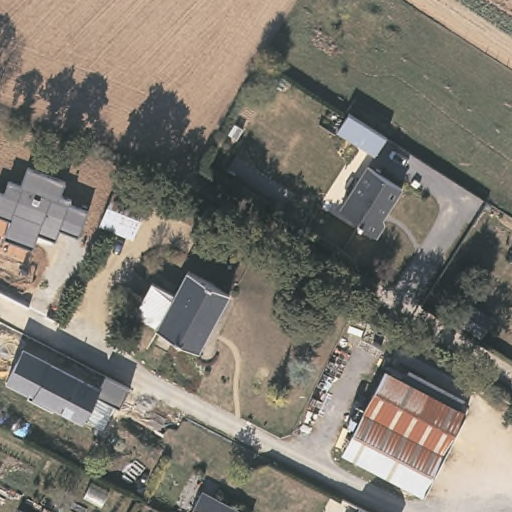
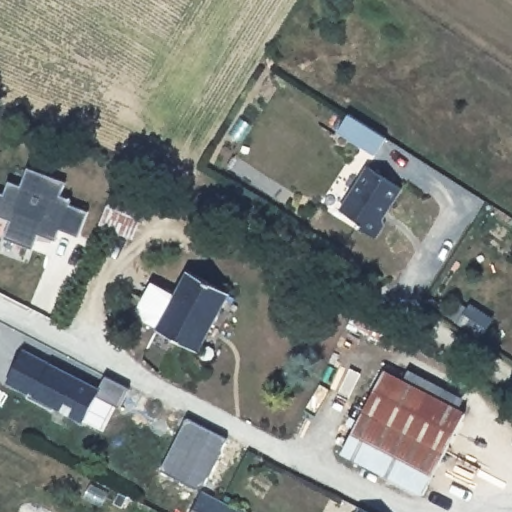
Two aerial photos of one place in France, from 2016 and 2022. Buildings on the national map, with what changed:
unchanged [(392,133),(381,150),(344,127),(354,109),(392,133)]
unchanged [(396,183),(375,215),(381,218),(369,235),(348,221),(351,216),(335,205),(362,162),(396,183)]
unchanged [(3,194),(9,181),(22,187),(28,167),(65,181),(60,196),(71,199),(68,205),(86,213),(78,235),(60,228),(55,240),(39,233),(32,247),(5,238),(10,219),(0,215),(0,193),(3,194)]
unchanged [(147,193),(128,241),(106,233),(96,229),(116,181),(147,193)]
unchanged [(233,296),(201,356),(161,334),(162,331),(149,324),(144,309),(156,288),(179,301),(193,275),(233,296)]
unchanged [(106,376),(127,387),(119,405),(96,395),(83,421),(7,383),(25,349),(100,387),(106,376)]
unchanged [(464,412),(422,493),(342,449),(385,370),(464,412)]
new [(201,487),(161,468),(187,416),(226,437),(201,487)]
unchanged [(242,512),(192,512),(203,491),(242,512)]
unchanged [(359,506),(371,512),(356,512),(359,506)]
demolished [(30,512),(17,512),(19,507),(30,512)]

